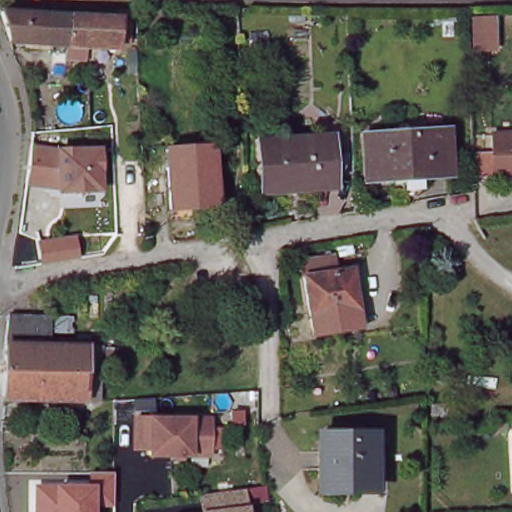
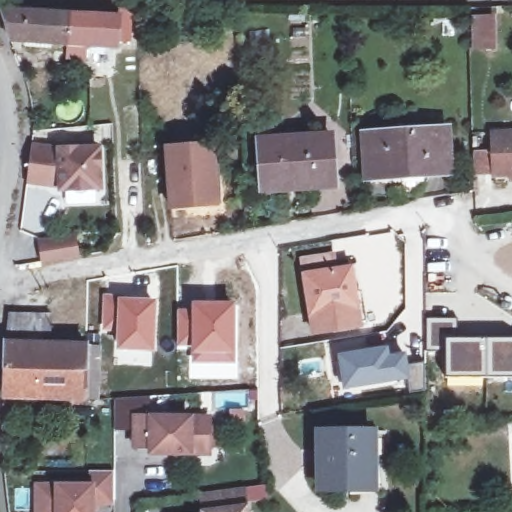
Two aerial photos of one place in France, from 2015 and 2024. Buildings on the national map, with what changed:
unchanged [(60,44),(62,16),(107,20),(109,11),(123,11),(123,41),(111,41),(110,47),(60,44)]
unchanged [(3,38),(0,30),(0,12),(62,16),(60,44),(4,40),(3,38)]
unchanged [(491,172),(490,128),(512,128),(512,172),(491,172)]
unchanged [(366,179),(365,136),(446,135),(447,178),(366,179)]
unchanged [(261,184),(258,142),(329,140),(330,186),(295,187),(293,184),(261,184)]
unchanged [(176,146),(191,145),(217,144),(219,203),(193,203),(177,204),(176,146)]
unchanged [(57,149),(100,148),(104,191),(60,193),(60,188),(25,185),(34,145),(57,149)]
unchanged [(60,252),(57,238),(81,233),(84,248),(60,252)]
unchanged [(317,329),(315,310),(304,253),(334,247),(337,265),(353,263),(360,302),(363,321),(317,329)]
new [(102,294),(115,294),(115,296),(157,298),(155,351),(115,349),(115,331),(101,331),(102,294)]
new [(191,307),(191,301),(236,301),(236,363),(191,363),(191,345),(177,345),(176,307),(191,307)]
unchanged [(6,339),(7,310),(47,310),(69,310),(67,328),(47,328),(47,341),(6,339)]
new [(456,321),(452,338),(512,337),(512,377),(443,377),(444,350),(422,350),(424,318),(456,321)]
unchanged [(98,397),(82,396),(1,393),(2,378),(2,339),(6,339),(47,341),(62,341),(85,342),(99,343),(98,397)]
new [(390,344),(391,352),(407,350),(408,364),(424,362),(426,390),(409,392),(408,379),(342,389),(336,352),(390,344)]
unchanged [(208,416),(207,452),(149,451),(149,445),(132,444),(133,415),(208,416)]
demolished [(502,437),(501,428),(512,426),(512,436),(502,437)]
unchanged [(325,488),(325,430),(375,430),(375,482),(346,482),(346,489),(325,488)]
new [(54,483),(90,484),(90,471),(114,471),(112,506),(99,506),(99,512),(94,512),(33,512),(32,483),(54,483)]
unchanged [(215,487),(242,484),(252,483),(253,496),(244,497),(246,512),(203,512),(201,489),(215,487)]

